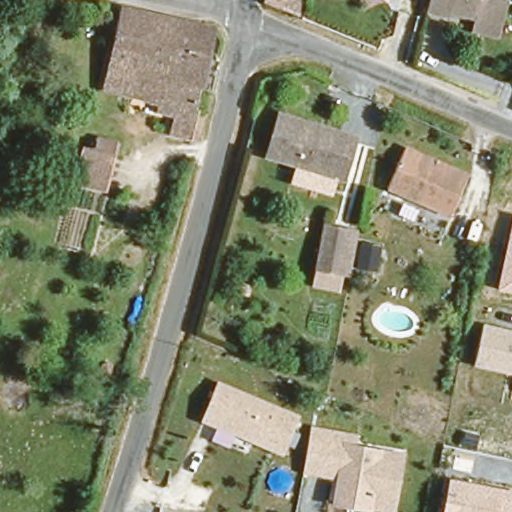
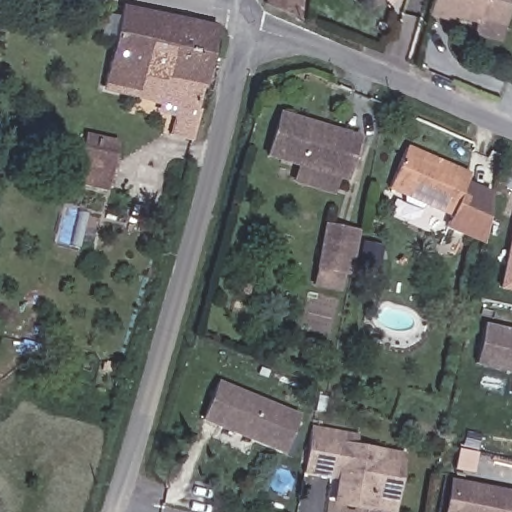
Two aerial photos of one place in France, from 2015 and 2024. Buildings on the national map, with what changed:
unchanged [(263,1),(263,0),(298,0),(297,16),(263,1)]
unchanged [(388,3),(384,0),(390,0),(388,3)]
unchanged [(478,12),(451,7),(449,13),(445,12),(433,10),(426,8),(428,0),(507,0),(504,16),(502,28),(476,23),(478,12)]
unchanged [(177,15),(164,75),(199,83),(191,135),(169,131),(175,100),(126,89),(122,114),(97,109),(99,102),(120,2),(177,15)]
unchanged [(164,75),(177,15),(212,23),(199,83),(164,75)]
unchanged [(345,176),(267,154),(278,114),(356,135),(345,176)]
unchanged [(72,175),(79,137),(88,139),(90,126),(113,131),(103,182),(72,175)]
unchanged [(406,145),(468,172),(464,181),(451,211),(390,184),(406,145)]
new [(451,211),(464,181),(490,194),(481,245),(443,229),(451,211)]
unchanged [(314,260),(324,219),(349,224),(339,267),(314,260)]
unchanged [(512,225),(512,293),(497,290),(512,225)]
unchanged [(370,241),(381,244),(375,268),(365,266),(356,264),(358,255),(362,239),(370,241)]
unchanged [(512,330),(512,374),(476,367),(485,324),(512,330)]
unchanged [(202,414),(218,378),(298,414),(278,452),(202,414)]
unchanged [(382,405),(367,401),(370,389),(385,392),(382,405)]
unchanged [(335,476),(301,469),(308,425),(357,433),(356,444),(405,450),(395,512),(392,512),(333,502),(335,476)]
unchanged [(512,488),(512,512),(444,512),(451,477),(512,488)]

